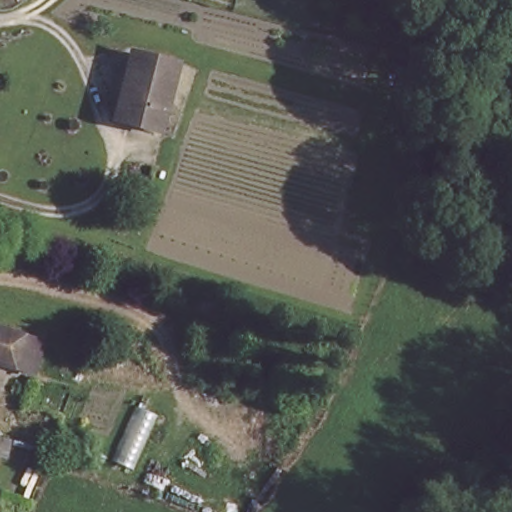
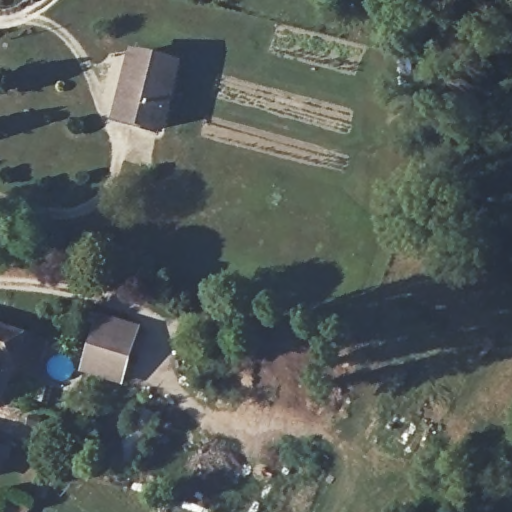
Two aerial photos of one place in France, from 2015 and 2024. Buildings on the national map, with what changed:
unchanged [(163,127),(115,114),(132,49),(181,60),(163,127)]
new [(96,312),(141,326),(122,387),(77,373),(96,312)]
unchanged [(50,335),(40,368),(0,359),(0,321),(50,335)]

